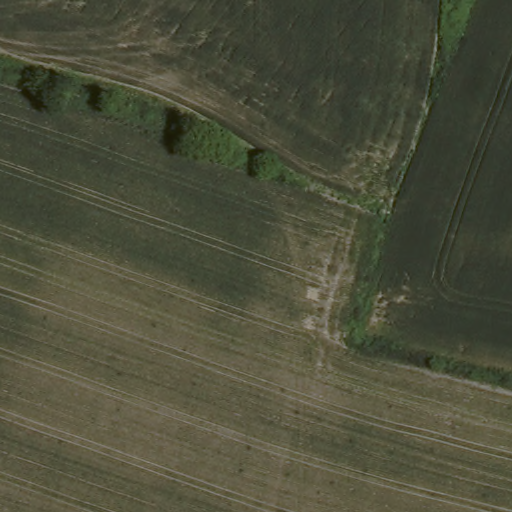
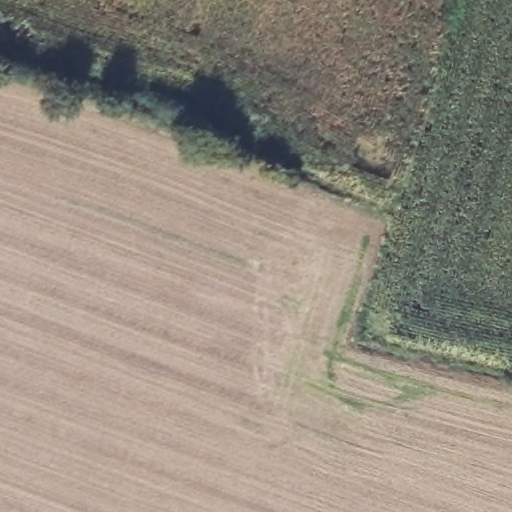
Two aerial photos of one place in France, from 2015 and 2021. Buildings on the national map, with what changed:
[]

